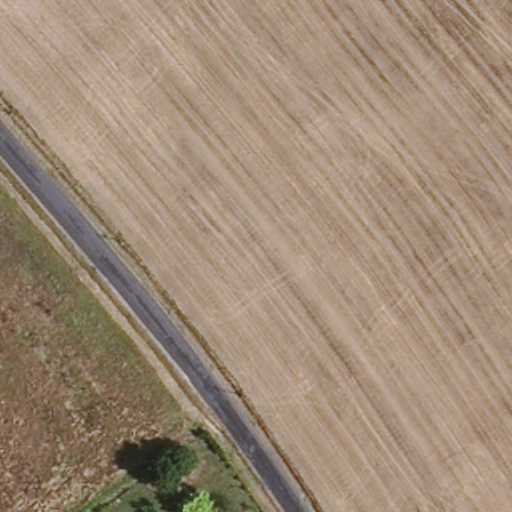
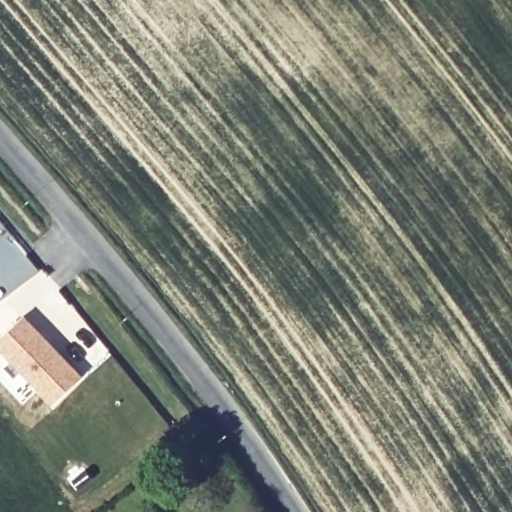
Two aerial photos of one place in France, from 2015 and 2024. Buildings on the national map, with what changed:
new [(80,375),(49,405),(0,355),(0,336),(24,315),(80,375)]

